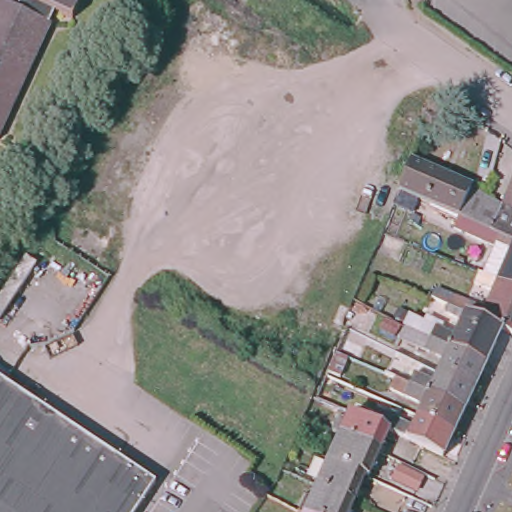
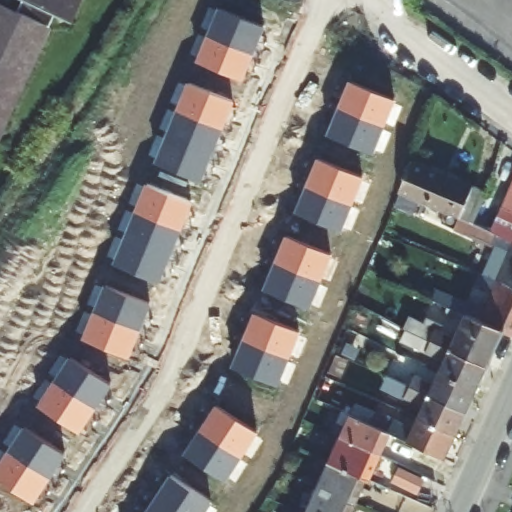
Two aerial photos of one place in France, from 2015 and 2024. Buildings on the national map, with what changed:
unchanged [(70,21),(52,13),(0,126),(0,4),(15,10),(20,0),(80,0),(70,21)]
new [(266,27),(244,81),(200,62),(222,10),(266,27)]
new [(370,154),(325,136),(348,81),(392,100),(370,154)]
new [(234,103),(201,180),(160,164),(192,85),(234,103)]
new [(363,178),(342,231),(297,214),(318,160),(363,178)]
unchanged [(452,230),(457,219),(397,194),(409,163),(449,180),(447,184),(468,194),(470,190),(485,197),(502,205),(497,220),(512,227),(512,230),(510,234),(512,234),(512,242),(492,234),(491,234),(486,245),(452,230)]
new [(193,205),(165,283),(119,265),(151,186),(193,205)]
new [(329,255),(307,307),(264,290),(285,236),(329,255)]
unchanged [(495,282),(512,245),(512,289),(495,282)]
unchanged [(512,289),(512,334),(512,335),(502,331),(465,315),(449,307),(452,298),(484,312),(495,282),(512,289)]
new [(154,305),(134,359),(88,340),(110,288),(154,305)]
new [(299,331),(279,385),(233,368),(254,314),(299,331)]
unchanged [(502,331),(485,366),(407,331),(412,320),(454,338),(465,315),(502,331)]
unchanged [(443,362),(402,342),(407,331),(485,366),(475,390),(438,373),(443,362)]
new [(82,431),(42,407),(75,358),(115,383),(82,431)]
unchanged [(385,377),(389,368),(412,380),(414,376),(434,385),(438,373),(475,390),(465,413),(403,385),(385,377)]
demolished [(103,512),(0,512),(0,383),(130,472),(103,512)]
unchanged [(465,413),(454,436),(417,419),(422,407),(404,399),(405,395),(400,393),(403,385),(465,413)]
new [(257,430),(225,481),(185,454),(217,406),(257,430)]
unchanged [(337,426),(344,413),(350,416),(382,431),(390,435),(380,458),(342,441),(333,437),(337,426)]
unchanged [(390,435),(382,431),(385,423),(392,425),(393,422),(412,430),(417,419),(454,436),(444,460),(390,435)]
new [(0,478),(0,470),(27,430),(65,455),(36,502),(0,478)]
unchanged [(380,458),(370,484),(365,482),(330,466),(342,441),(380,458)]
unchanged [(365,482),(353,509),(319,493),(330,466),(365,482)]
new [(147,512),(171,476),(210,503),(204,512),(147,512)]
unchanged [(353,509),(352,512),(310,512),(319,493),(353,509)]

